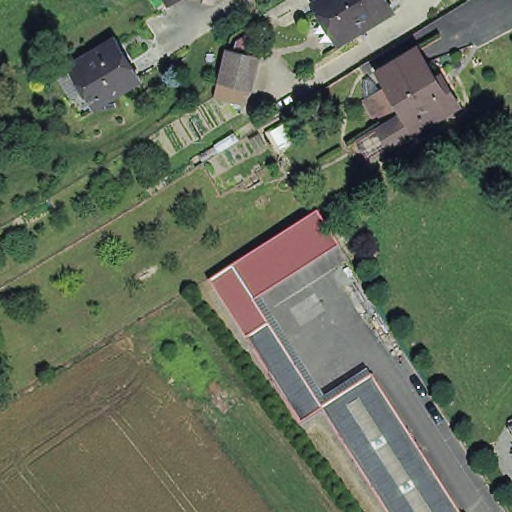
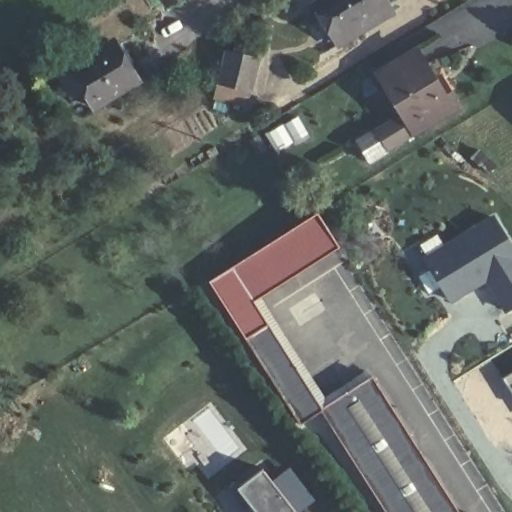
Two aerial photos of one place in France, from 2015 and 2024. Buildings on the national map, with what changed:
unchanged [(171,7),(166,0),(183,0),(171,7)]
unchanged [(389,3),(361,20),(365,27),(340,42),(336,34),(334,35),(313,0),(387,0),(389,3)]
unchanged [(75,62),(119,36),(142,74),(98,100),(89,85),(75,94),(61,70),(75,62)]
unchanged [(396,149),(386,133),(369,105),(392,91),(383,75),(419,53),(437,83),(443,80),(451,92),(461,109),(425,130),(413,139),(396,149)]
unchanged [(248,90),(223,84),(229,60),(231,54),(238,55),(255,60),(248,90)]
new [(437,232),(443,241),(494,211),(512,241),(512,308),(505,312),(484,282),(450,303),(439,286),(428,293),(416,275),(427,267),(415,246),(437,232)]
unchanged [(213,280),(267,246),(321,212),(343,247),(258,301),(271,323),(248,337),(213,280)]
unchanged [(304,423),(248,337),(271,323),(325,408),(324,408),(325,410),(304,423)]
new [(512,370),(512,394),(501,377),(512,370)]
unchanged [(461,512),(389,512),(325,410),(324,408),(325,408),(376,376),(461,512)]
new [(297,512),(256,512),(254,509),(250,512),(238,512),(227,497),(239,488),(263,469),(297,512)]

